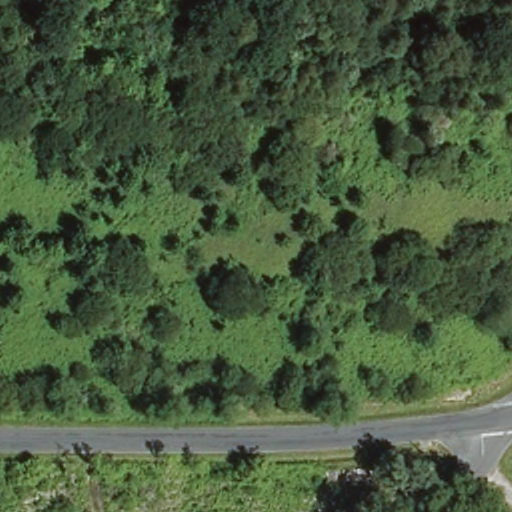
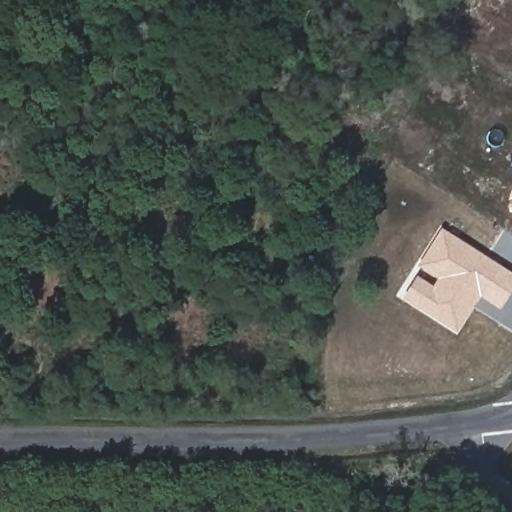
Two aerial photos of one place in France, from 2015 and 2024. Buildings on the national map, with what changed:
new [(512,208),(512,210),(511,210),(512,208)]
new [(403,298),(417,276),(432,286),(436,279),(420,267),(442,227),(512,272),(512,292),(500,310),(480,297),(456,332),(403,298)]

